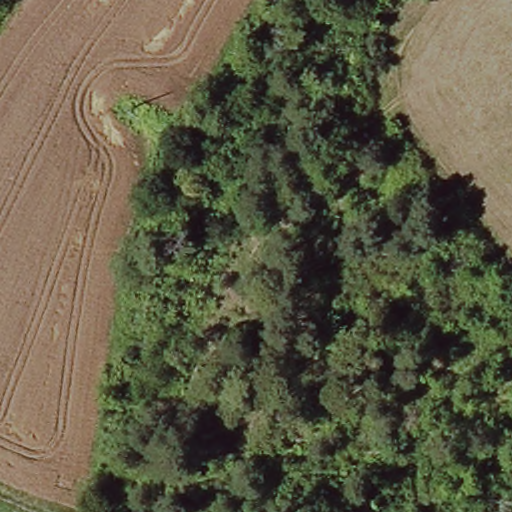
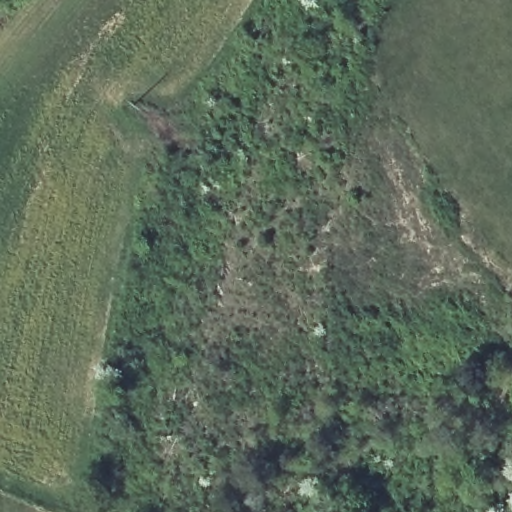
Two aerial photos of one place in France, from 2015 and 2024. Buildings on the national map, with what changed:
[]

